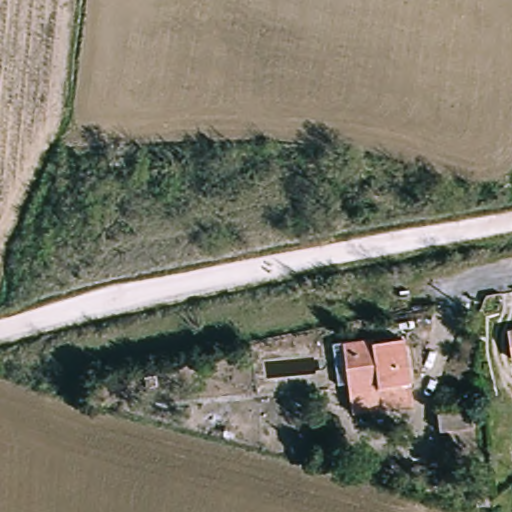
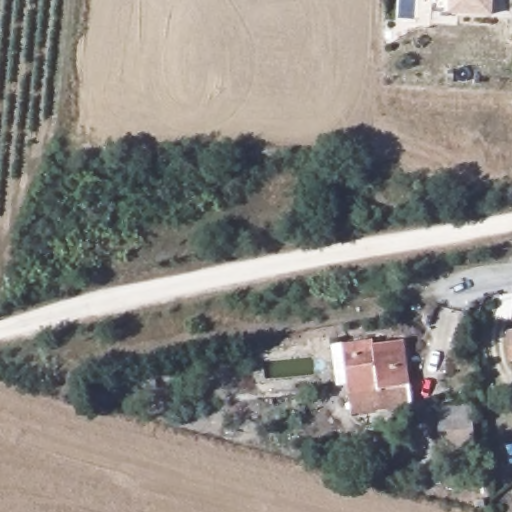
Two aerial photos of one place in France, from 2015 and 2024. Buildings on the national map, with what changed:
new [(449,13),(449,0),(492,0),(491,15),(449,13)]
unchanged [(408,406),(348,411),(344,367),(342,345),(374,342),(374,348),(403,346),(408,406)]
unchanged [(463,412),(465,430),(432,433),(431,414),(463,412)]

